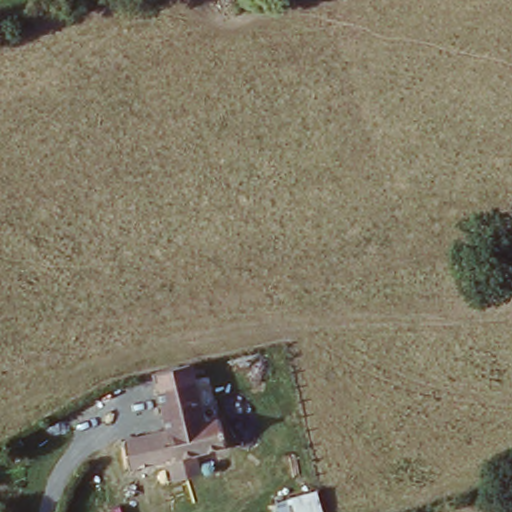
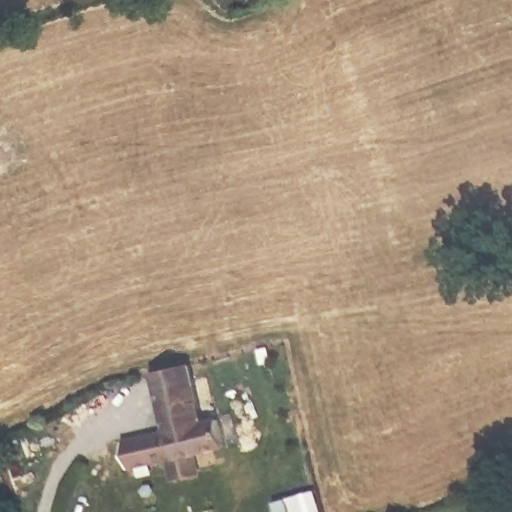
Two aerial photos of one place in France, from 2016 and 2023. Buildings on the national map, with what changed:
unchanged [(174,483),(168,463),(133,473),(125,445),(166,432),(156,391),(154,380),(188,372),(191,382),(203,423),(219,418),(225,447),(194,457),(199,477),(174,483)]
unchanged [(304,497),(308,512),(275,512),(274,506),(304,497)]

